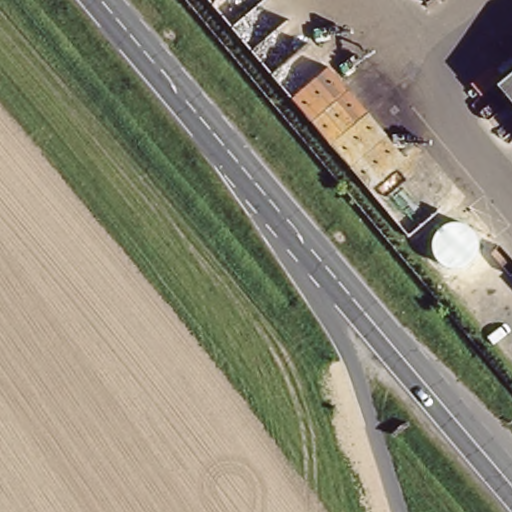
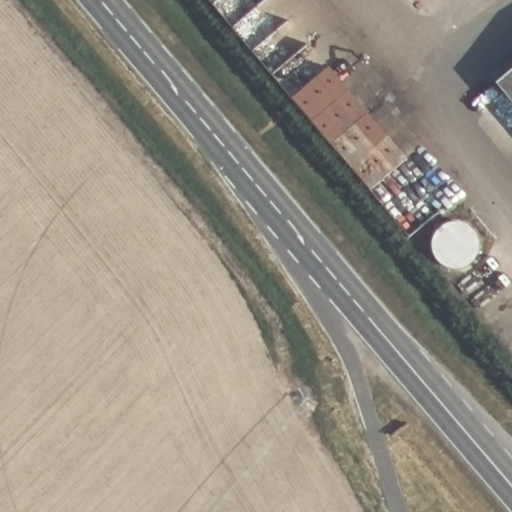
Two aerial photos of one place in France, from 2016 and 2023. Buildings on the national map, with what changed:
unchanged [(493,86),(512,69),(512,106),(493,86)]

